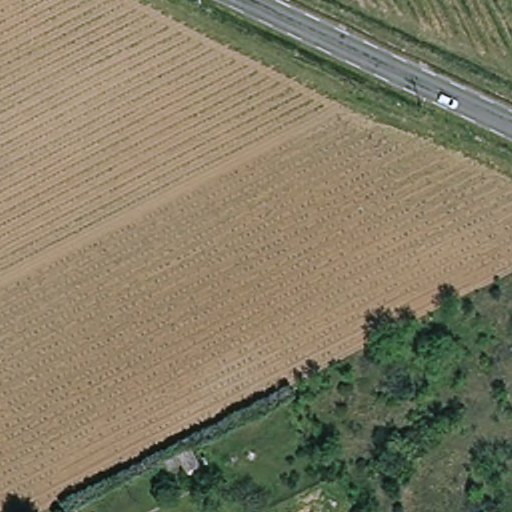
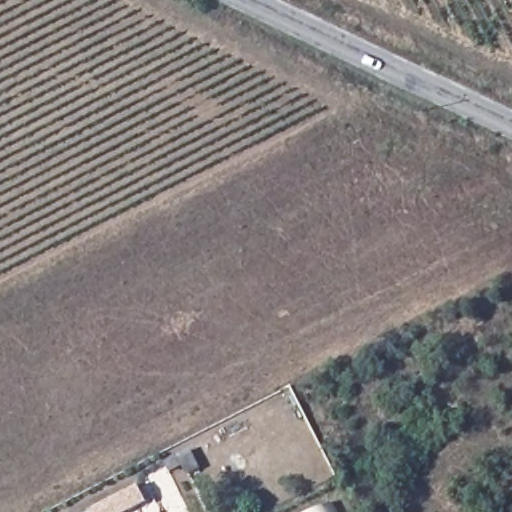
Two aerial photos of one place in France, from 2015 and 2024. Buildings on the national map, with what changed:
new [(147,502),(128,512),(89,512),(89,511),(138,486),(147,502)]
new [(313,512),(330,505),(334,512),(313,512)]

